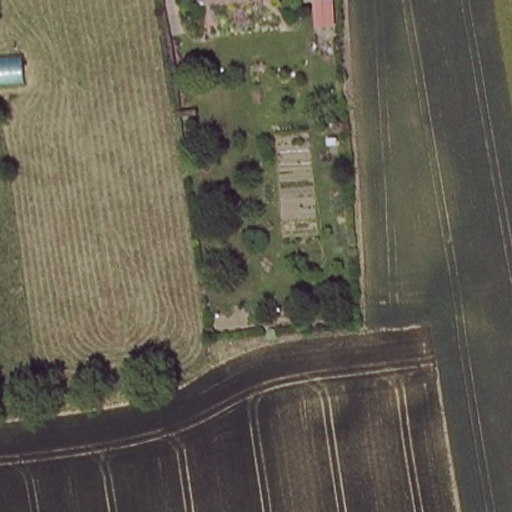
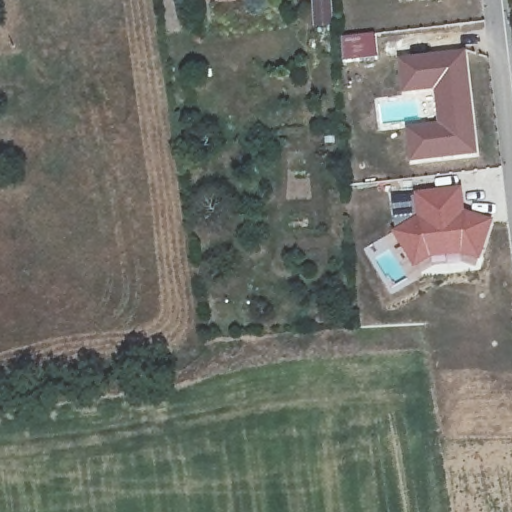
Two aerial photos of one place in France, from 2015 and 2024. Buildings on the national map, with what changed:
new [(465,52),(479,156),(412,165),(408,130),(440,125),(435,92),(404,95),(400,60),(465,52)]
demolished [(23,81),(0,83),(0,59),(19,57),(23,81)]
new [(464,189),(466,211),(495,221),(482,261),(462,255),(432,259),(417,269),(394,234),(417,219),(415,194),(464,189)]

